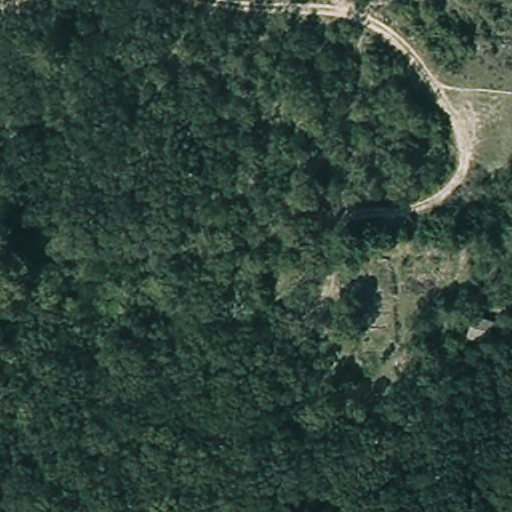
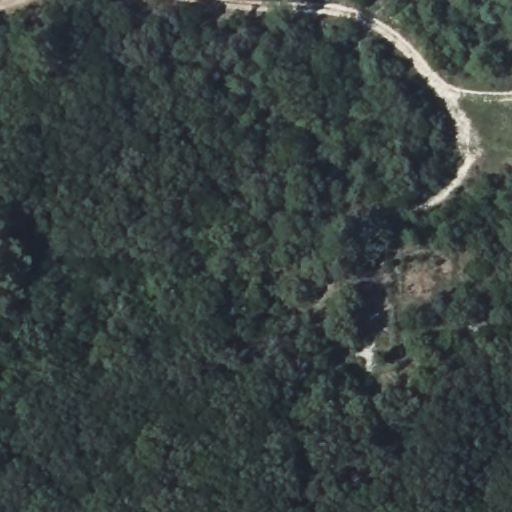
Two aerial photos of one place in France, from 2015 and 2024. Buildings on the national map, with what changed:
unchanged [(494,322),(482,344),(462,334),(474,315),(494,322)]

